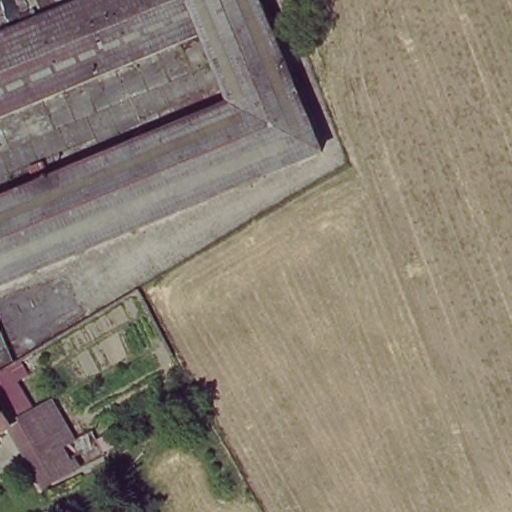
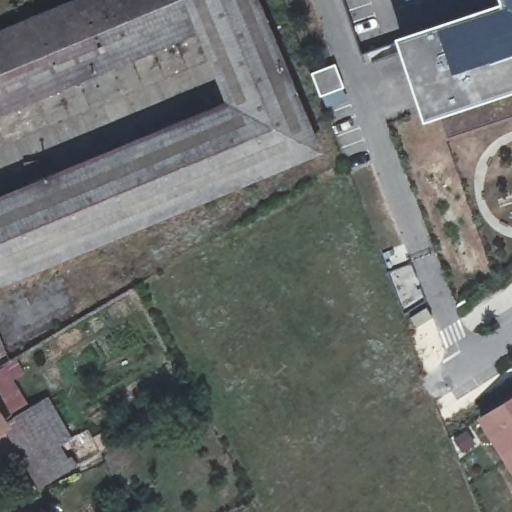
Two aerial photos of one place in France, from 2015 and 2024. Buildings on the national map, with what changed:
unchanged [(0,276),(0,191),(225,99),(214,70),(197,28),(0,108),(0,27),(67,0),(255,0),(273,42),(315,145),(0,276)]
new [(445,136),(434,115),(422,119),(395,37),(500,2),(499,0),(512,0),(512,113),(445,136)]
new [(335,64),(344,87),(320,96),(311,72),(335,64)]
unchanged [(44,422),(13,438),(3,421),(0,416),(0,366),(10,361),(44,422)]
new [(477,418),(512,394),(512,474),(477,418)]
unchanged [(0,423),(0,416),(3,421),(0,423)]
unchanged [(13,438),(44,422),(74,471),(43,490),(13,438)]

